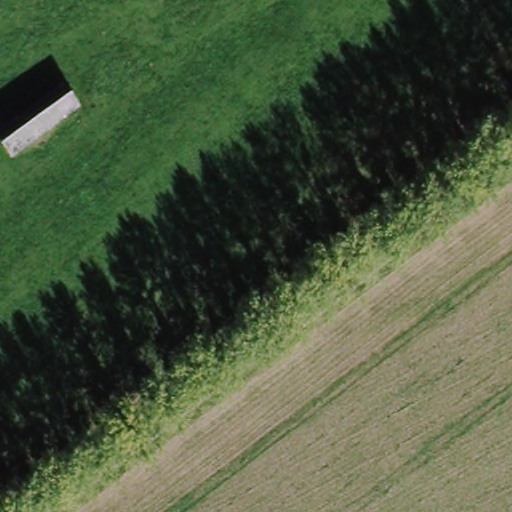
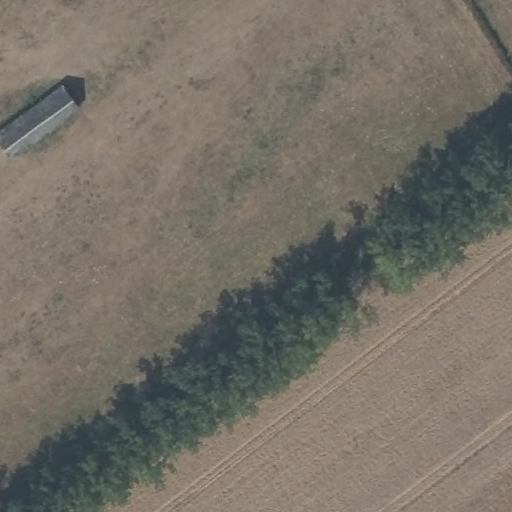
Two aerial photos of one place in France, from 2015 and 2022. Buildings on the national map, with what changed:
unchanged [(10,152),(0,138),(0,128),(60,84),(76,105),(10,152)]

